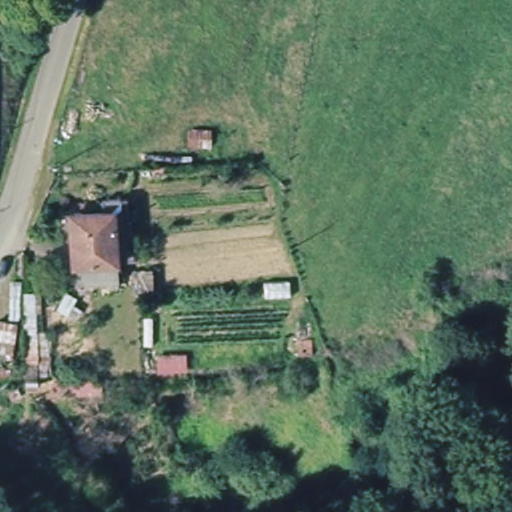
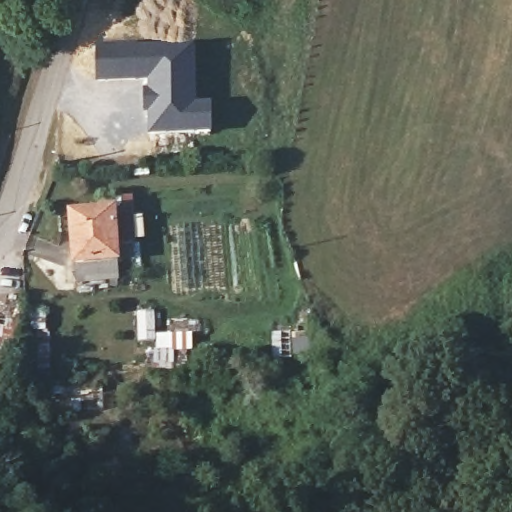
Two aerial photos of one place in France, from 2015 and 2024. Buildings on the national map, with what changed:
new [(136,45),(197,46),(199,102),(212,102),(214,132),(147,135),(146,117),(144,117),(142,82),(97,81),(96,46),(136,45)]
unchanged [(125,207),(129,262),(117,264),(120,288),(76,292),(76,268),(72,216),(125,207)]

